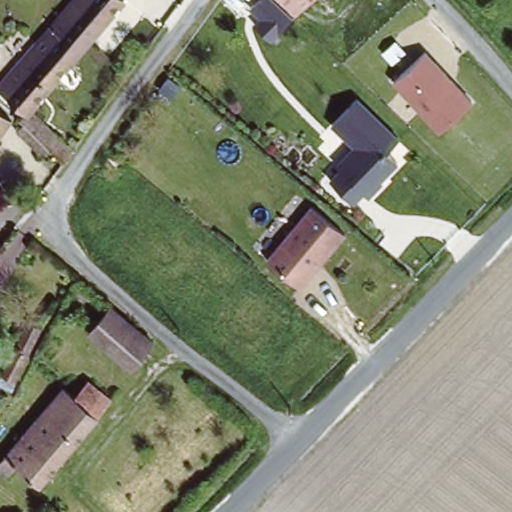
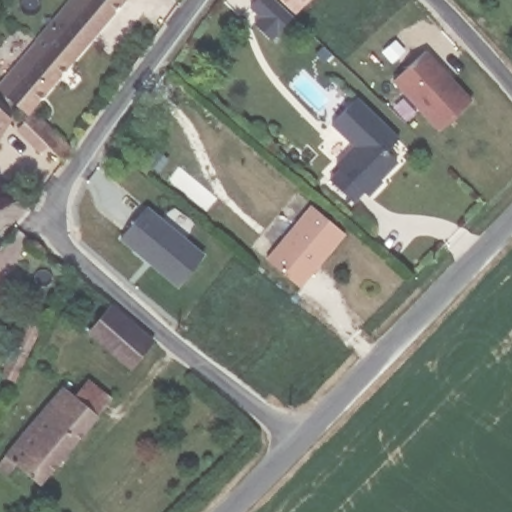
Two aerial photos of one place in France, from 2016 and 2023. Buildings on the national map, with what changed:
unchanged [(4,87),(40,44),(43,46),(56,29),(54,27),(77,0),(126,0),(34,111),(4,87)]
unchanged [(298,13),(284,0),(309,0),(298,13)]
unchanged [(430,49),(474,101),(439,133),(392,80),(430,49)]
unchanged [(365,197),(361,193),(350,204),(328,182),(338,171),(333,166),(351,147),(328,125),(353,100),(395,141),(384,153),(394,163),(376,181),(379,183),(365,197)]
unchanged [(21,131),(30,121),(28,119),(34,111),(79,148),(70,159),(54,144),(46,152),(21,131)]
unchanged [(0,138),(0,116),(11,124),(0,138)]
new [(179,287),(120,240),(148,206),(206,253),(179,287)]
unchanged [(341,240),(297,293),(264,266),(309,212),(341,240)]
unchanged [(137,371),(88,331),(107,307),(156,347),(137,371)]
unchanged [(28,356),(13,388),(1,383),(16,351),(28,356)]
unchanged [(11,477),(0,468),(0,465),(64,387),(76,397),(89,381),(113,400),(100,416),(43,484),(21,465),(11,477)]

